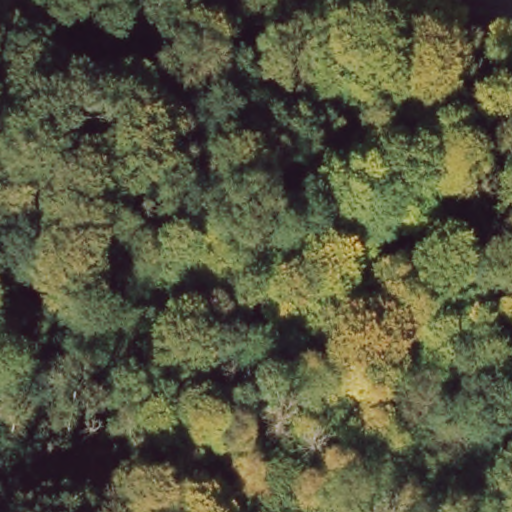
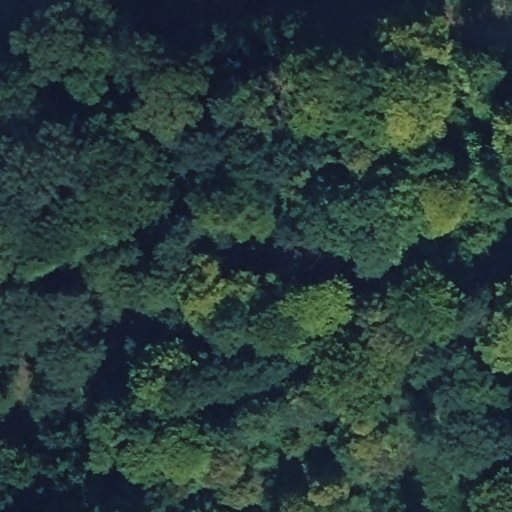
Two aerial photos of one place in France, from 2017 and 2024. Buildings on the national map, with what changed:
[]

